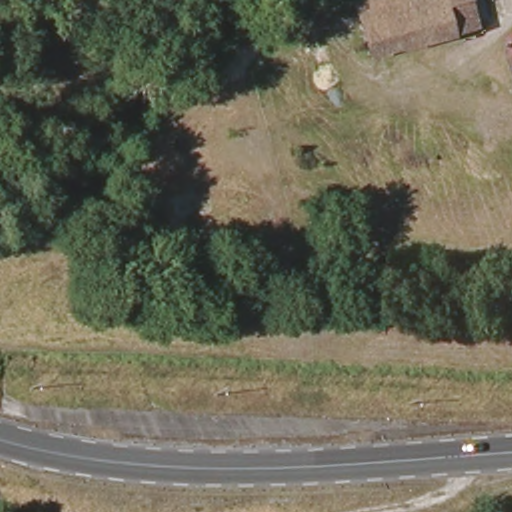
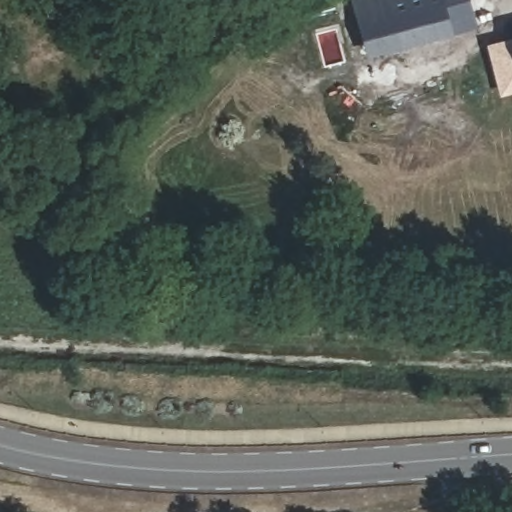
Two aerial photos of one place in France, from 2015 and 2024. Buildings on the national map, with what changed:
unchanged [(394,14),(402,45),(368,54),(354,0),(445,0),(394,14)]
unchanged [(475,25),(402,45),(394,14),(445,0),(468,0),(475,25)]
new [(486,45),(512,37),(512,92),(500,96),(486,45)]

